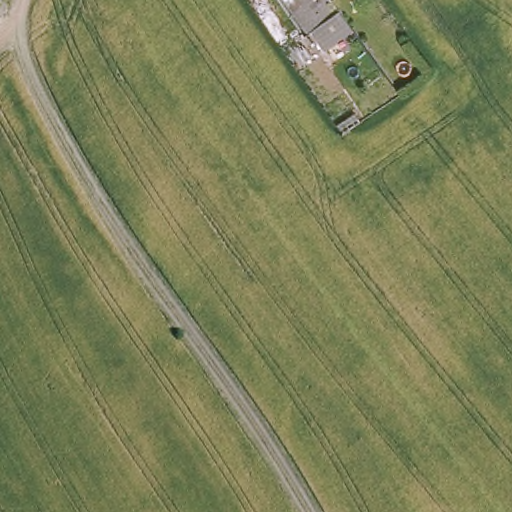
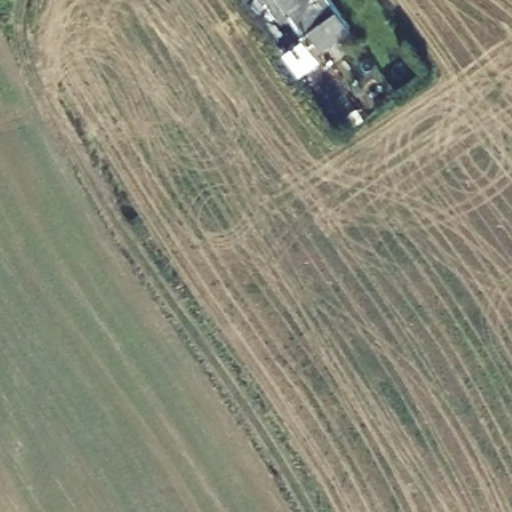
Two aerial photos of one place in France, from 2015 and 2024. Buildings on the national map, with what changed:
unchanged [(316,49),(280,0),(333,0),(352,26),(316,49)]

